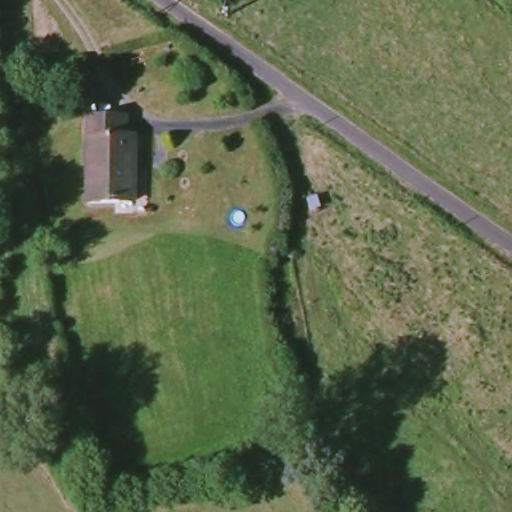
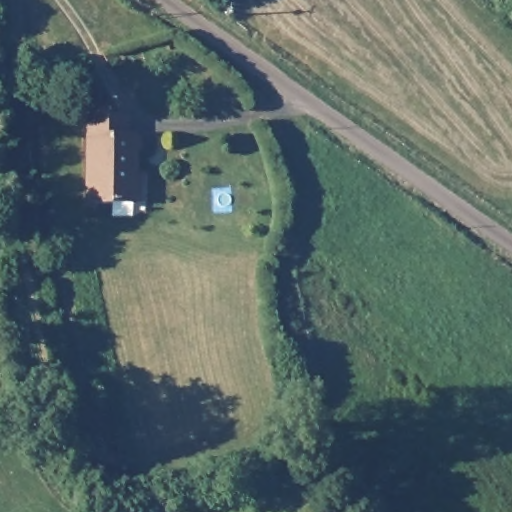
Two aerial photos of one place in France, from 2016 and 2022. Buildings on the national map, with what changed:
unchanged [(93,116),(131,117),(131,135),(139,135),(137,202),(91,201),(93,116)]

